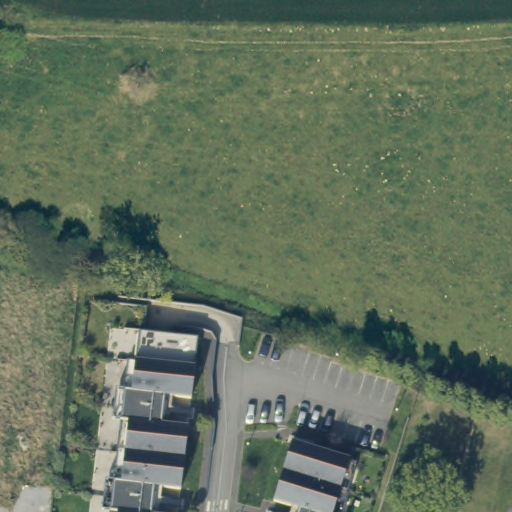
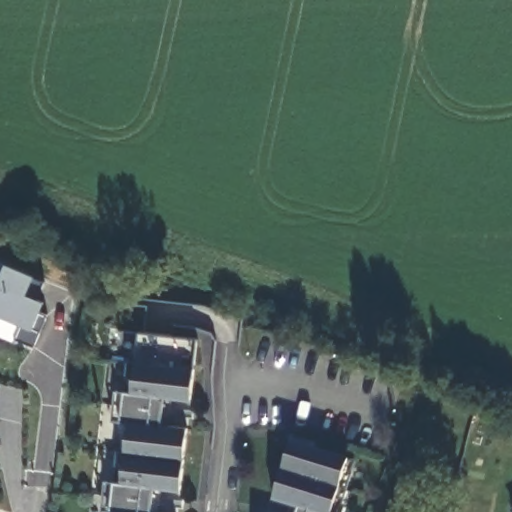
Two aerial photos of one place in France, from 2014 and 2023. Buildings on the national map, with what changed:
new [(1,272),(5,265),(34,276),(45,280),(37,300),(44,301),(40,312),(48,315),(35,346),(15,338),(20,325),(0,316),(0,272),(1,272)]
unchanged [(108,507),(100,506),(104,475),(111,476),(115,446),(117,416),(110,416),(113,385),(121,386),(127,326),(135,327),(116,512),(108,512),(108,507)]
unchanged [(162,512),(116,512),(135,327),(195,333),(189,394),(170,392),(167,420),(185,423),(179,485),(160,482),(157,511),(162,512)]
unchanged [(292,509),(295,510),(296,503),(271,495),(289,437),(346,455),(339,480),(329,512),(292,512),(292,509)]
unchanged [(339,480),(346,455),(354,457),(338,512),(329,512),(339,480)]

